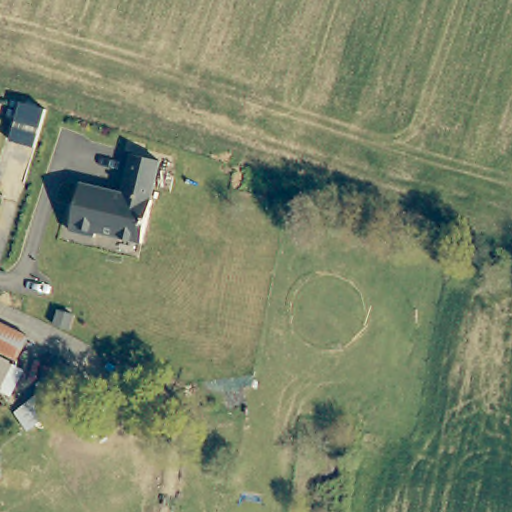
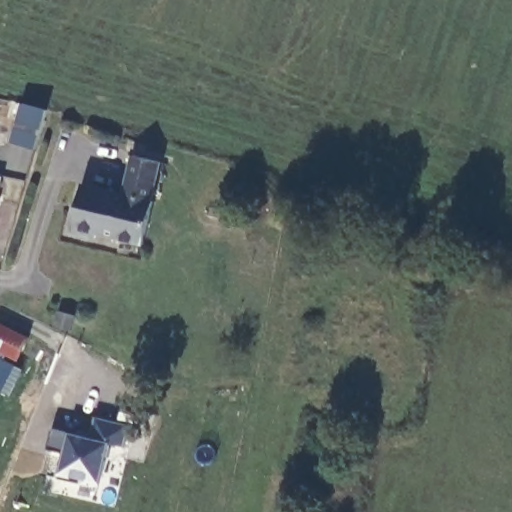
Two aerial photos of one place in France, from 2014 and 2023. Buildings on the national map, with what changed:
new [(19,102),(44,109),(33,148),(9,141),(19,102)]
unchanged [(141,242),(99,232),(91,236),(69,231),(79,182),(121,192),(129,154),(159,161),(141,242)]
unchanged [(18,362),(0,353),(0,326),(29,340),(18,362)]
new [(126,446),(112,443),(103,484),(59,475),(64,453),(48,448),(53,429),(69,433),(90,437),(94,416),(129,424),(126,446)]

